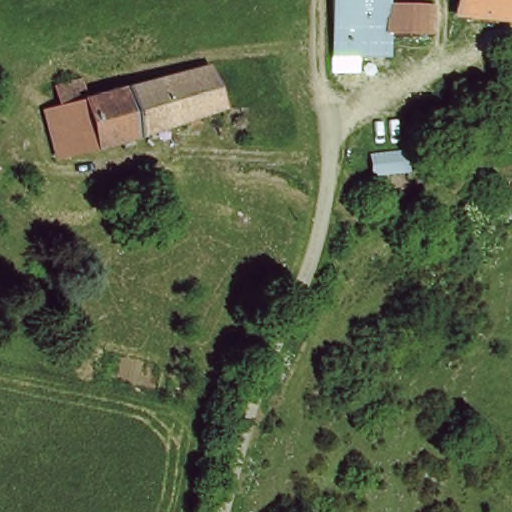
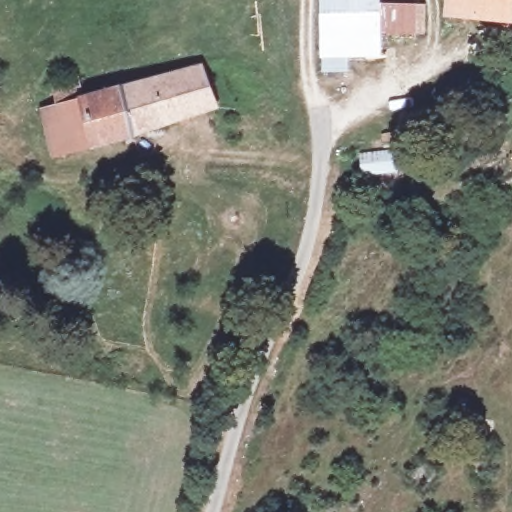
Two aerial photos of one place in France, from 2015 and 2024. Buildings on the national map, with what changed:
unchanged [(370,8),(421,7),(422,32),(374,34),(375,59),(372,59),(327,57),(322,0),(370,0),(370,8)]
unchanged [(512,29),(449,28),(449,0),(512,0),(512,29)]
unchanged [(59,164),(41,126),(60,119),(51,95),(72,87),(83,110),(199,64),(215,103),(59,164)]
unchanged [(361,163),(361,141),(398,142),(398,163),(361,163)]

